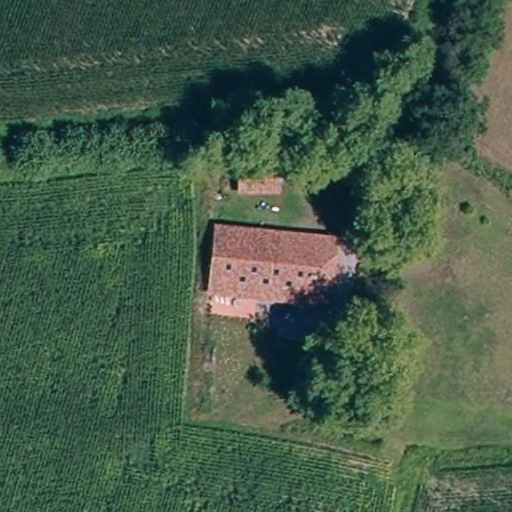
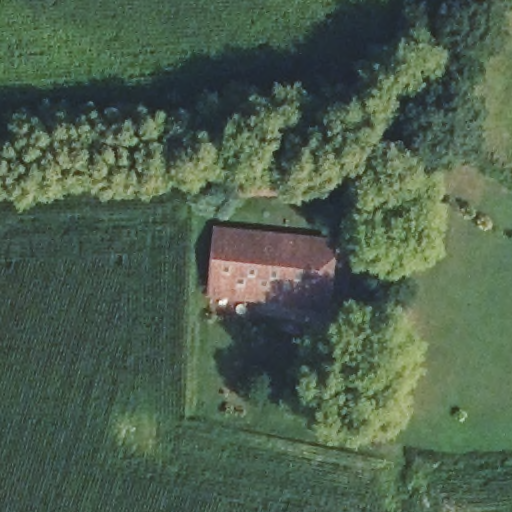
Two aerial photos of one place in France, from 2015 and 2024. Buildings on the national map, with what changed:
unchanged [(234,175),(260,176),(259,196),(233,197),(234,175)]
unchanged [(336,240),(331,303),(265,300),(217,298),(219,233),(336,240)]

